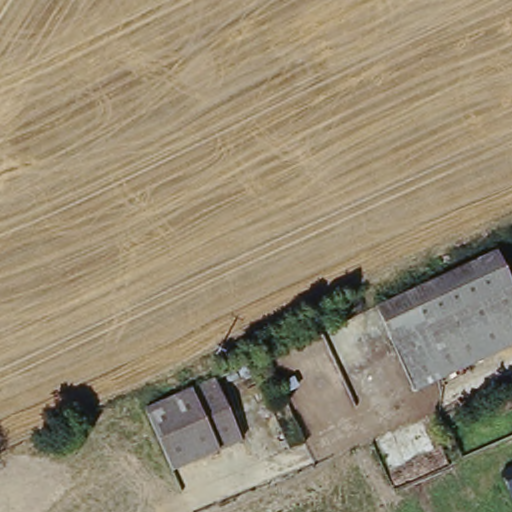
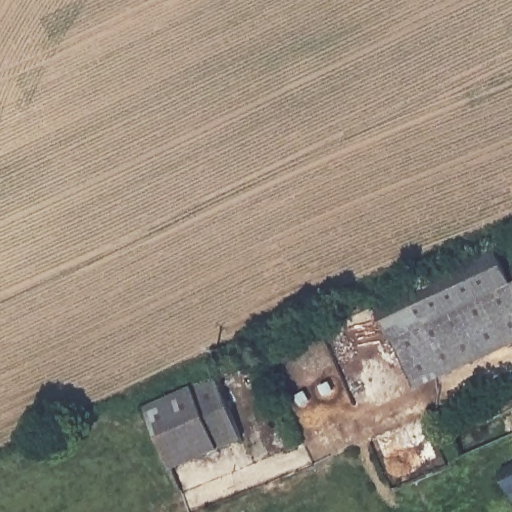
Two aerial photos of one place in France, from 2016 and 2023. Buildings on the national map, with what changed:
unchanged [(498,253),(512,280),(512,291),(457,317),(397,346),(380,311),(451,276),(498,253)]
unchanged [(512,291),(512,347),(507,349),(420,391),(406,364),(397,346),(457,317),(512,291)]
unchanged [(242,443),(209,459),(174,383),(209,368),(242,443)]
unchanged [(139,400),(174,383),(209,459),(173,475),(139,400)]
unchanged [(512,483),(508,473),(512,472),(512,483)]

